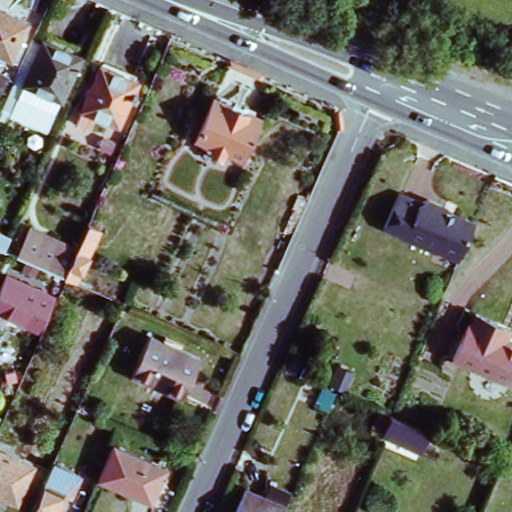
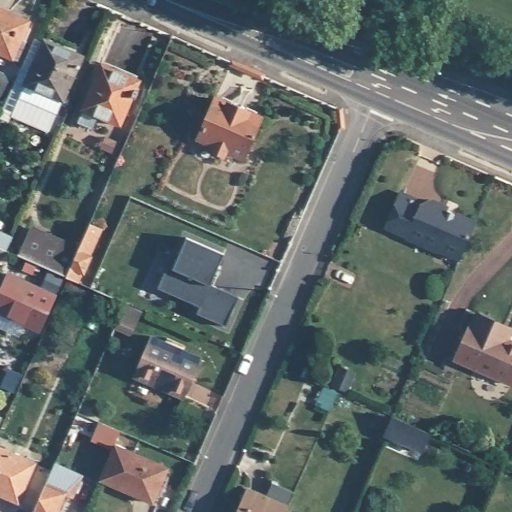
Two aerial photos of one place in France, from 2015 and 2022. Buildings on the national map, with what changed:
unchanged [(0,9),(31,22),(15,59),(0,53),(0,9)]
unchanged [(85,53),(58,112),(55,111),(17,95),(38,45),(41,37),(85,53)]
unchanged [(11,119),(7,125),(0,122),(0,120),(31,41),(38,45),(17,95),(55,111),(45,131),(11,119)]
unchanged [(79,110),(98,67),(135,84),(116,126),(79,110)]
unchanged [(0,95),(0,72),(10,75),(0,95)]
unchanged [(197,143),(213,106),(256,124),(240,161),(197,143)]
unchanged [(436,251),(405,238),(405,236),(385,228),(398,194),(421,203),(427,199),(446,207),(446,209),(475,221),(459,258),(437,249),(436,251)]
unchanged [(80,245),(90,221),(102,226),(78,287),(19,255),(31,224),(80,245)]
demolished [(201,222),(250,245),(233,283),(183,261),(201,222)]
new [(217,273),(216,273),(210,285),(241,298),(228,327),(198,315),(201,308),(160,290),(169,268),(175,253),(181,255),(175,270),(188,239),(225,257),(217,273)]
unchanged [(0,263),(0,246),(6,248),(0,263)]
unchanged [(0,294),(9,274),(42,289),(40,293),(56,300),(42,331),(0,313),(0,294)]
unchanged [(511,383),(454,359),(469,323),(472,324),(476,315),(497,324),(510,329),(505,339),(512,342),(512,381),(511,383)]
unchanged [(202,354),(183,399),(130,376),(148,333),(202,354)]
new [(0,434),(0,417),(6,419),(0,434)]
unchanged [(422,451),(386,435),(393,419),(429,434),(422,451)]
unchanged [(0,445),(35,460),(20,497),(0,488),(0,445)]
unchanged [(165,468),(150,502),(102,480),(118,447),(165,468)]
unchanged [(50,470),(53,463),(80,474),(70,496),(62,493),(53,512),(30,512),(43,484),(50,470)]
unchanged [(284,512),(235,512),(247,483),(289,501),(284,512)]

